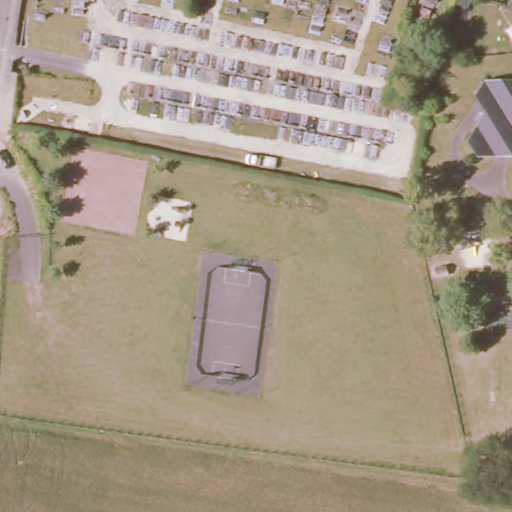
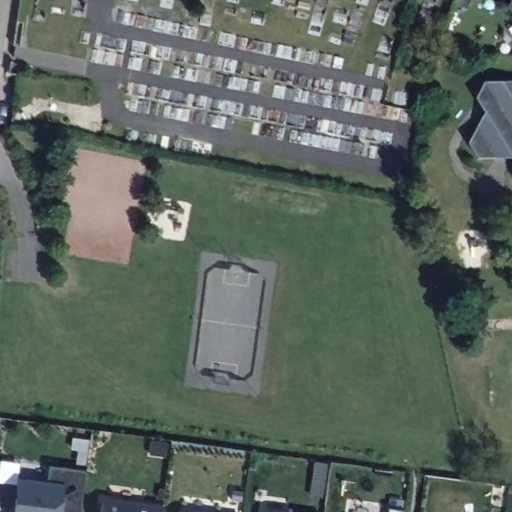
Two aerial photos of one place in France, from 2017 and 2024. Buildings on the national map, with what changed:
unchanged [(505,0),(512,0),(512,16),(504,5),(505,0)]
unchanged [(470,153),(461,147),(470,97),(480,74),(512,80),(512,157),(470,153)]
new [(85,476),(81,512),(17,512),(20,484),(48,487),(50,471),(85,476)]
new [(161,512),(100,512),(102,500),(162,508),(161,512)]
new [(270,512),(271,511),(278,512),(270,512)]

